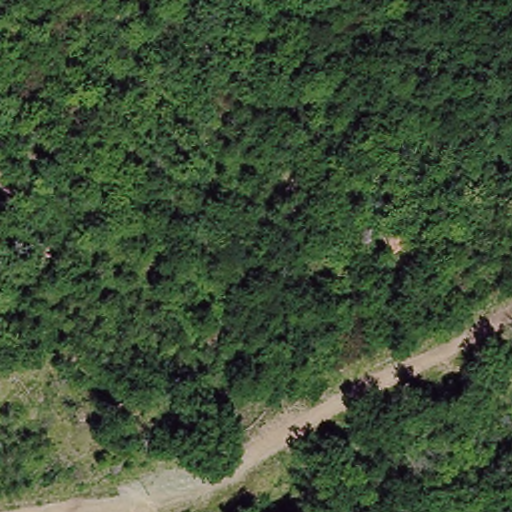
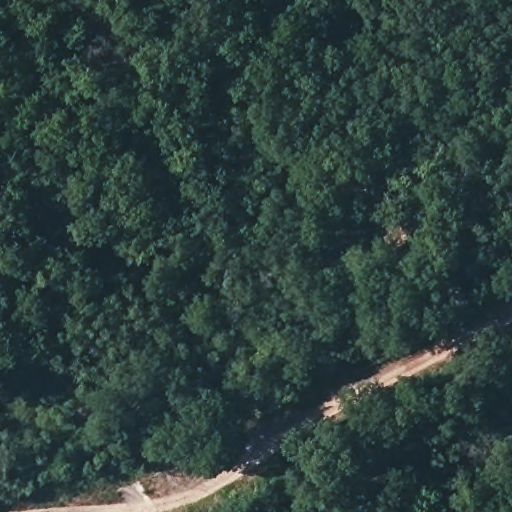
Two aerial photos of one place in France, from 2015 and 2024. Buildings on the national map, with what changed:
unchanged [(398,255),(390,246),(378,232),(398,215),(418,239),(398,255)]

